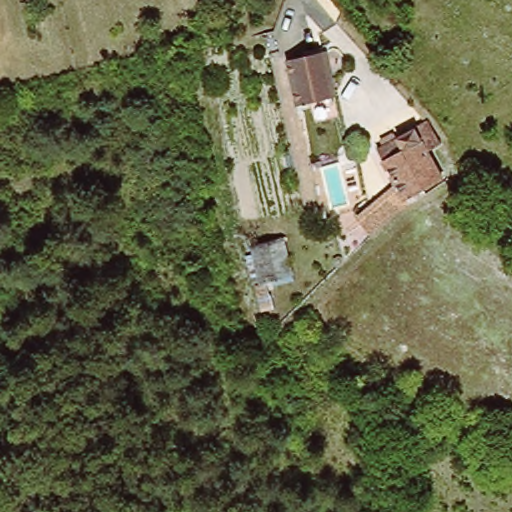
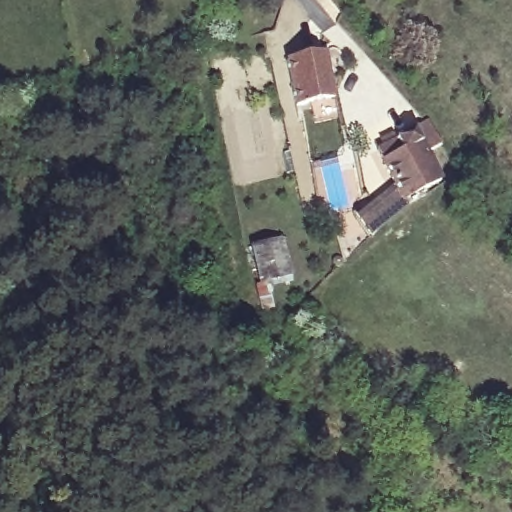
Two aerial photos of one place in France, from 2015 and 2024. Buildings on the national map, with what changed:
unchanged [(286,59),(326,50),(336,95),(296,104),(286,59)]
unchanged [(427,194),(409,204),(379,149),(429,120),(442,144),(429,151),(444,179),(425,188),(427,194)]
unchanged [(394,193),(405,205),(390,219),(379,206),(394,193)]
unchanged [(294,275),(261,283),(253,244),(285,237),(294,275)]

